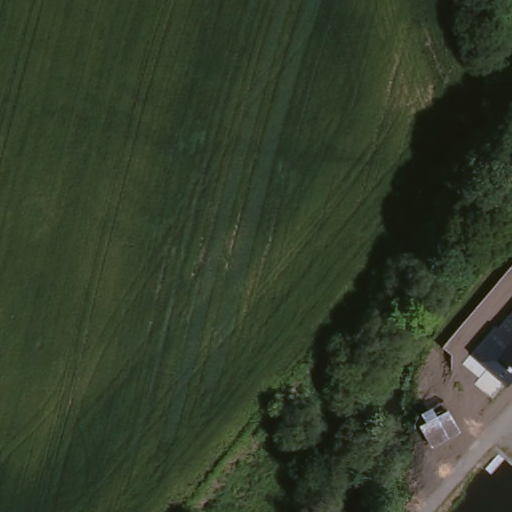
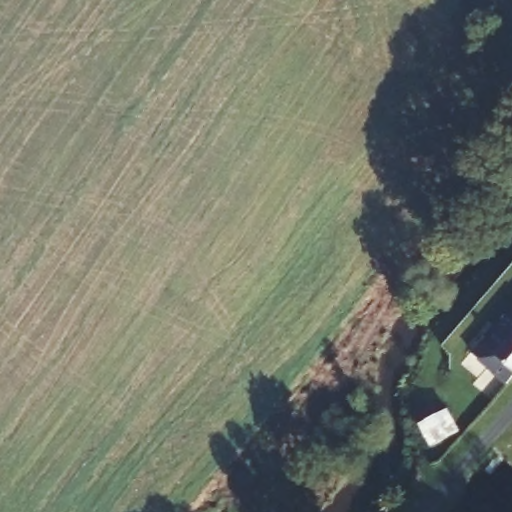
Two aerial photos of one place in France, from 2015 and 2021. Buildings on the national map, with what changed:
unchanged [(489,331),(509,310),(512,313),(512,373),(502,385),(483,363),(475,347),(489,331)]

